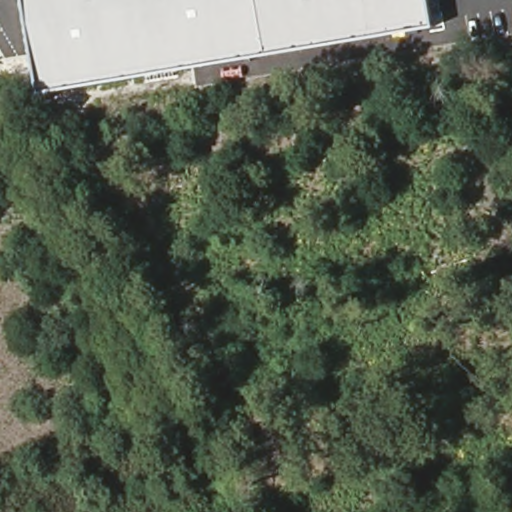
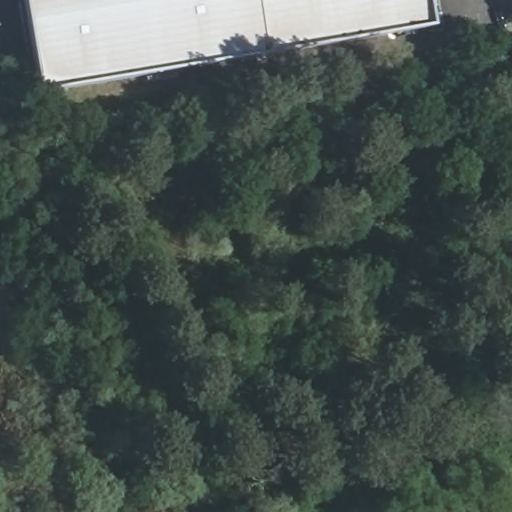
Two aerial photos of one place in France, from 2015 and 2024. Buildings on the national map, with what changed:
unchanged [(435,27),(39,93),(23,0),(430,0),(435,27)]

